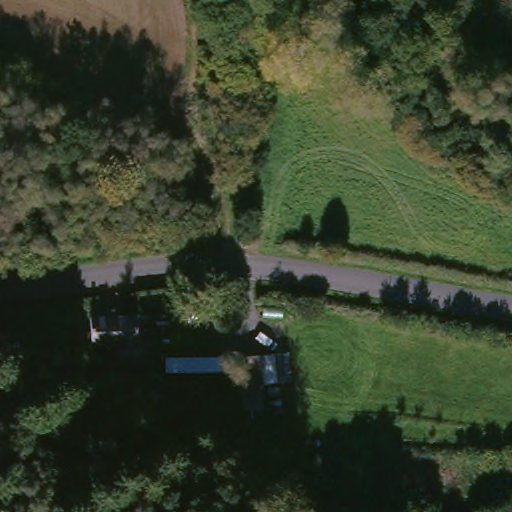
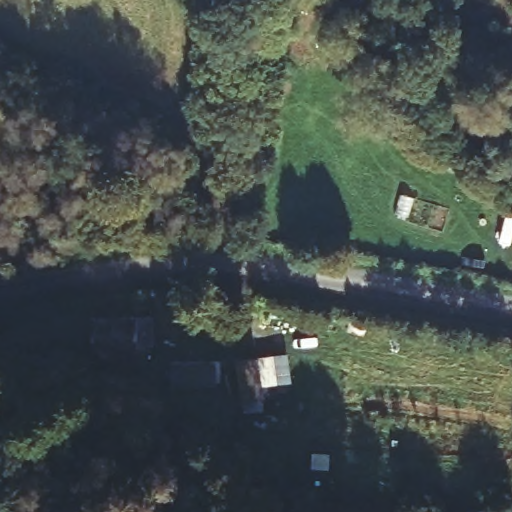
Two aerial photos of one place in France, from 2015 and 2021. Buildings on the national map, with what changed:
unchanged [(144,344),(147,365),(134,367),(113,370),(111,350),(88,352),(83,321),(146,314),(150,343),(144,344)]
unchanged [(259,404),(238,407),(229,359),(251,356),(259,404)]

